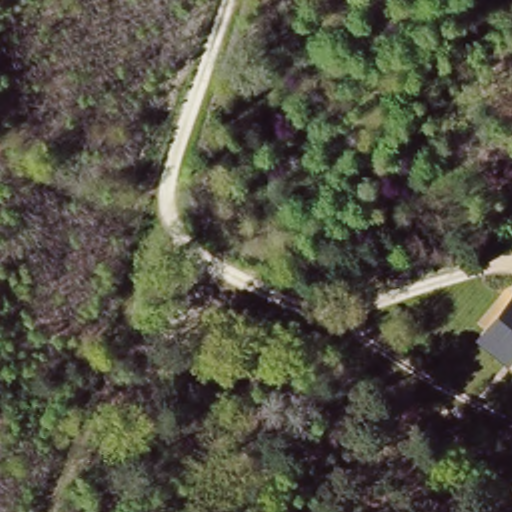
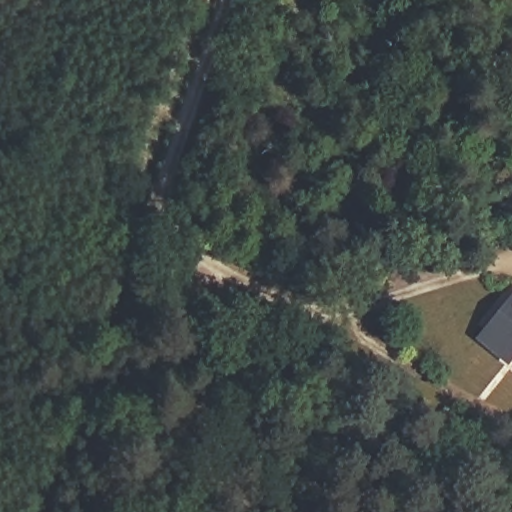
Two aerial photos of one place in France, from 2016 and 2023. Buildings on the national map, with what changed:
unchanged [(472,344),(512,295),(512,365),(507,371),(472,344)]

